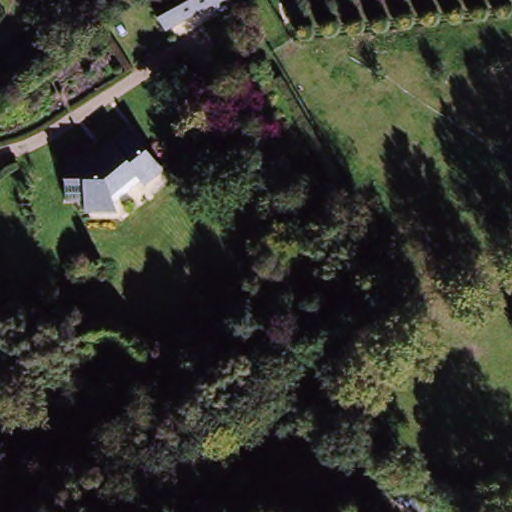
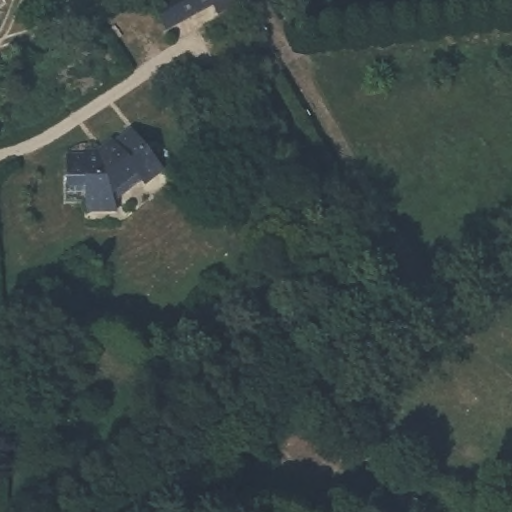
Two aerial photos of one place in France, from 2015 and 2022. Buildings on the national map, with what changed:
unchanged [(164,22),(152,0),(206,0),(164,22)]
unchanged [(212,8),(208,0),(230,0),(212,8)]
unchanged [(80,203),(81,198),(60,198),(60,173),(62,173),(62,153),(81,152),(81,148),(92,147),(106,137),(108,140),(123,129),(138,148),(141,146),(155,166),(139,179),(135,175),(107,197),(109,202),(110,206),(80,207),(80,203)]

